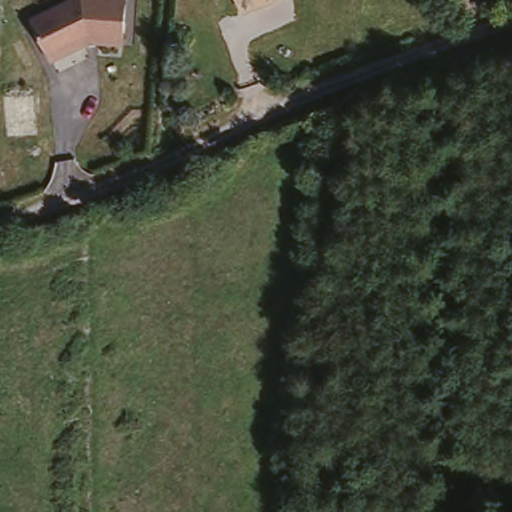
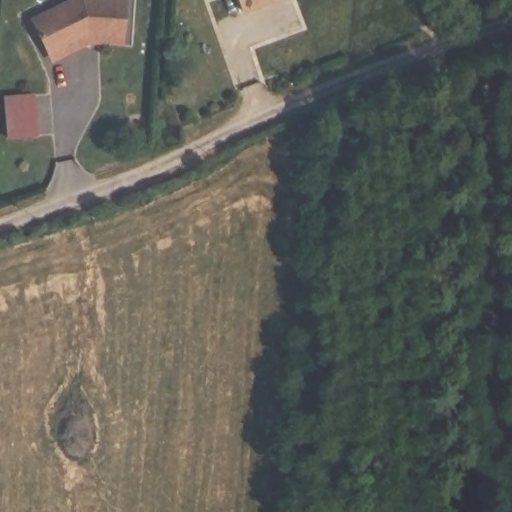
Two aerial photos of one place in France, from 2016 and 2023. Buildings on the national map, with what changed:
unchanged [(85,46),(51,64),(27,22),(80,0),(128,0),(124,45),(85,46)]
unchanged [(237,0),(264,0),(240,10),(237,0)]
new [(37,141),(5,144),(3,99),(33,98),(37,141)]

